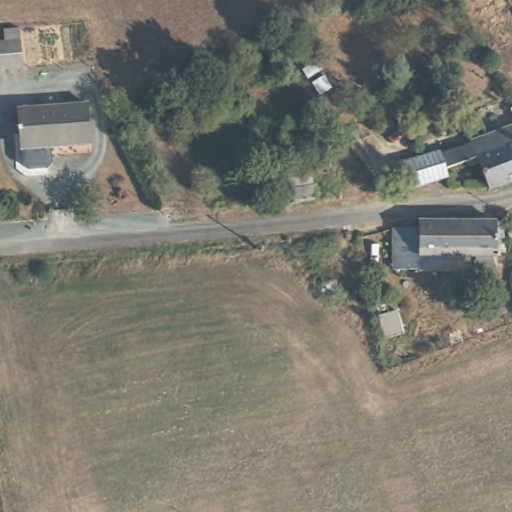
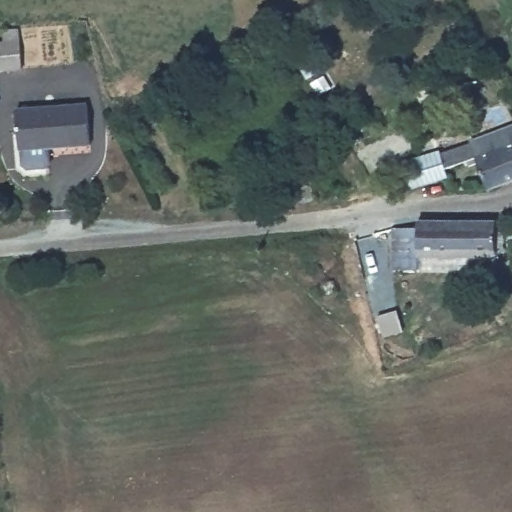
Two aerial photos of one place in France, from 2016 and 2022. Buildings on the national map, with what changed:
unchanged [(4,42),(2,29),(19,29),(22,75),(0,76),(0,43),(4,42)]
unchanged [(20,152),(18,111),(87,105),(91,146),(20,152)]
unchanged [(474,139),(512,125),(512,179),(493,186),(481,158),(474,139)]
unchanged [(418,161),(474,139),(481,158),(446,168),(448,174),(426,182),(400,191),(391,171),(418,161)]
unchanged [(488,215),(489,262),(468,261),(467,251),(419,251),(417,266),(392,264),(390,221),(413,217),(488,215)]
unchanged [(331,278),(337,296),(323,301),(312,286),(331,278)]

